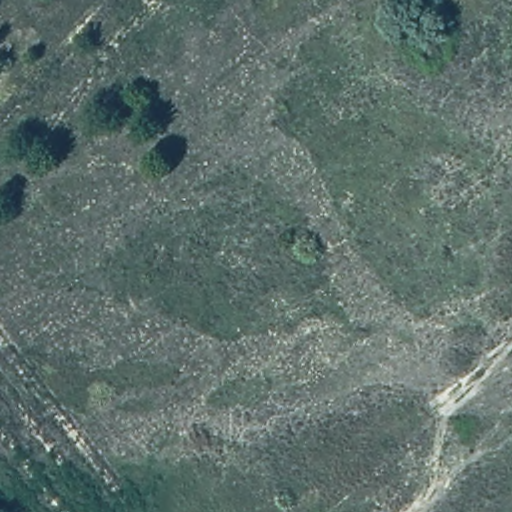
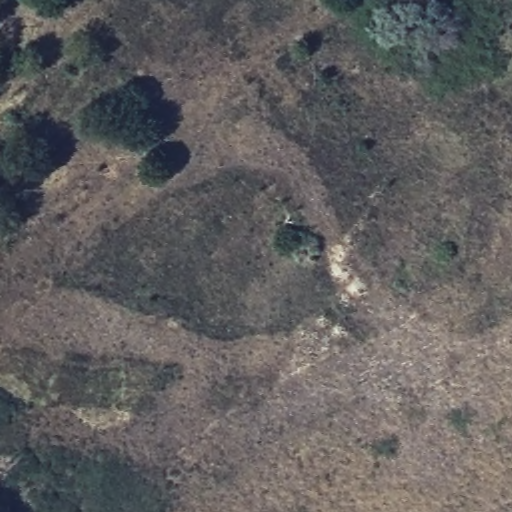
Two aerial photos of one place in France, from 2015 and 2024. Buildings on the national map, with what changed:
[]

